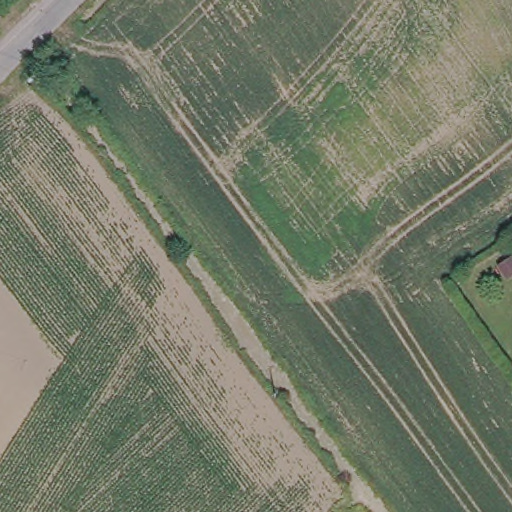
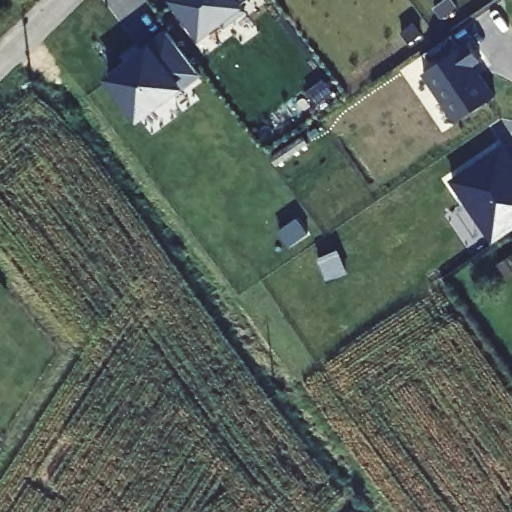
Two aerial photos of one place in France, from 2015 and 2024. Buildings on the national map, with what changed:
new [(251,0),(241,7),(244,11),(226,25),(223,21),(203,36),(177,2),(179,0),(251,0)]
new [(197,68),(183,78),(182,76),(135,112),(105,73),(145,43),(143,41),(164,24),(197,68)]
new [(424,73),(470,43),(482,61),(474,67),(480,74),(480,73),(496,97),(458,123),(424,73)]
new [(452,181),(503,145),(512,158),(512,230),(494,243),(452,181)]

